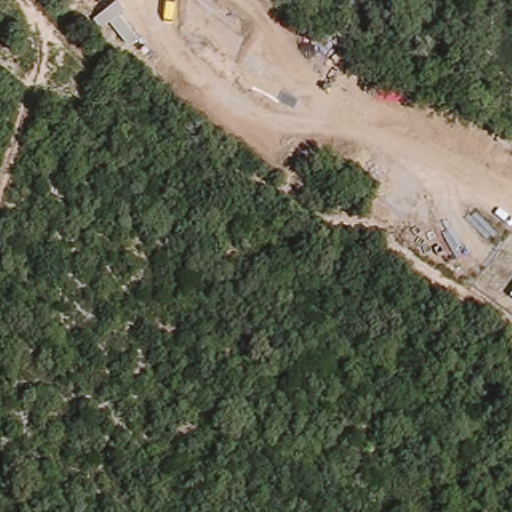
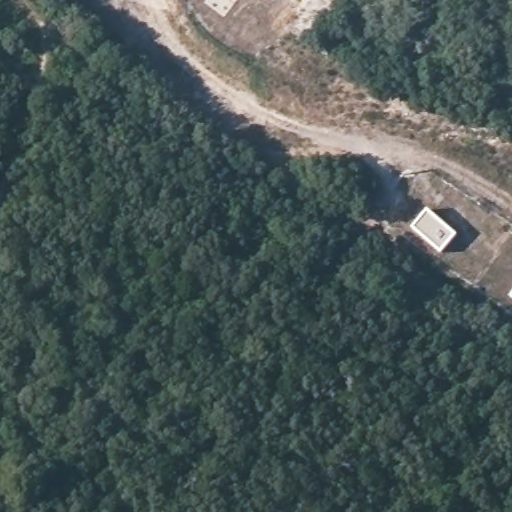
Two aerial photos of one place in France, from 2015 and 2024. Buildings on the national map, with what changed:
new [(427,211),(456,234),(440,252),(413,229),(427,211)]
unchanged [(512,297),(511,296),(512,296),(512,297)]

